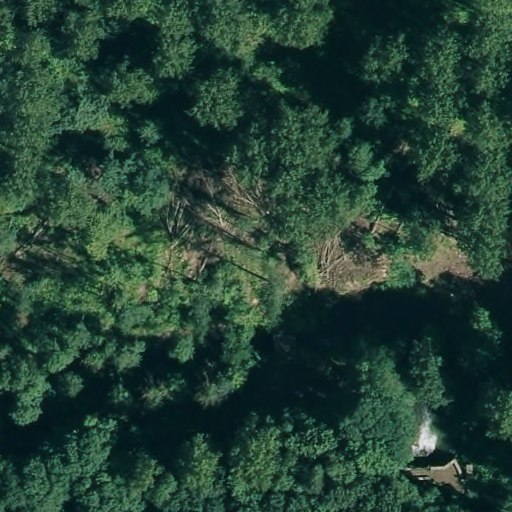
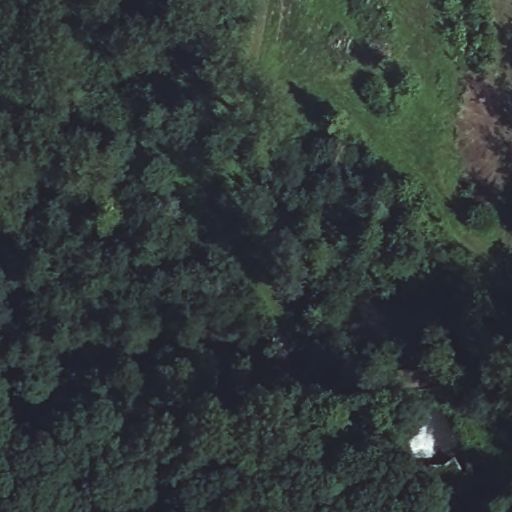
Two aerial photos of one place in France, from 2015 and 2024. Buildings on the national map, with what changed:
unchanged [(210,512),(157,512),(157,504),(175,502),(176,478),(205,478),(209,483),(210,503),(210,512)]

